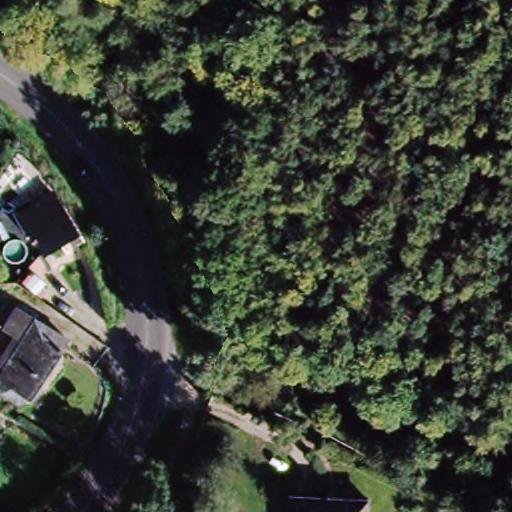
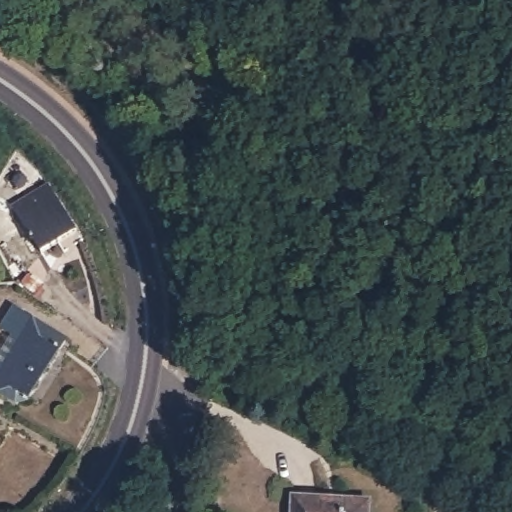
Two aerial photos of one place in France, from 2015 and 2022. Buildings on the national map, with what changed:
unchanged [(72,217),(43,245),(21,227),(51,196),(72,217)]
unchanged [(10,259),(42,277),(30,293),(3,276),(10,259)]
unchanged [(72,327),(42,395),(30,399),(2,382),(36,310),(72,327)]
unchanged [(362,493),(365,512),(289,512),(287,502),(362,493)]

